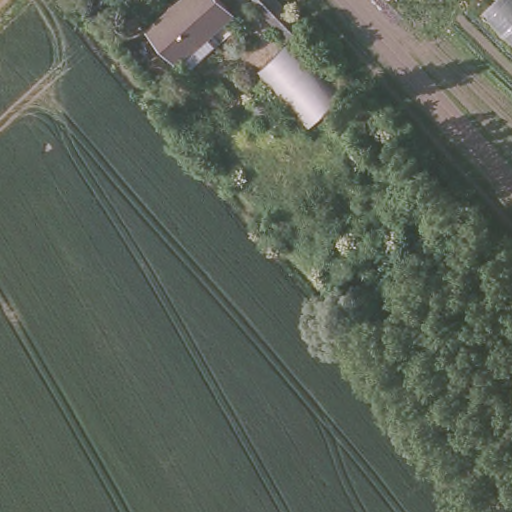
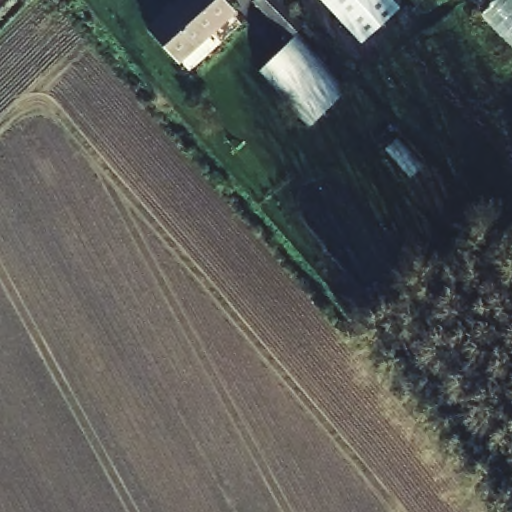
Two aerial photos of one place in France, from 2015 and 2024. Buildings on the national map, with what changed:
unchanged [(189,81),(178,68),(150,39),(191,0),(212,0),(230,19),(208,41),(220,54),(189,81)]
unchanged [(290,34),(258,0),(286,0),(305,20),(290,34)]
new [(400,6),(362,43),(321,0),(394,0),(400,6)]
unchanged [(480,14),(493,0),(512,0),(512,45),(480,14)]
unchanged [(341,95),(309,125),(258,70),(288,41),(341,95)]

